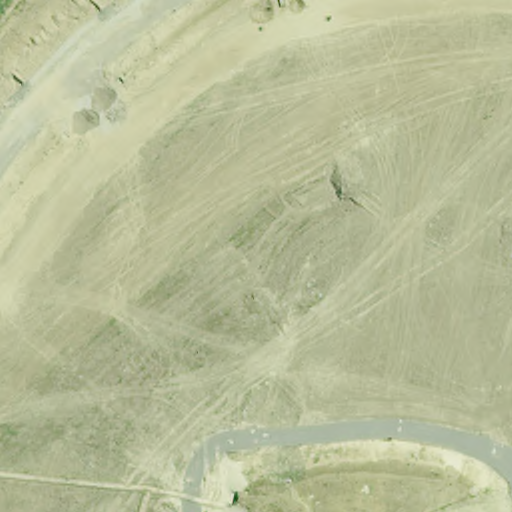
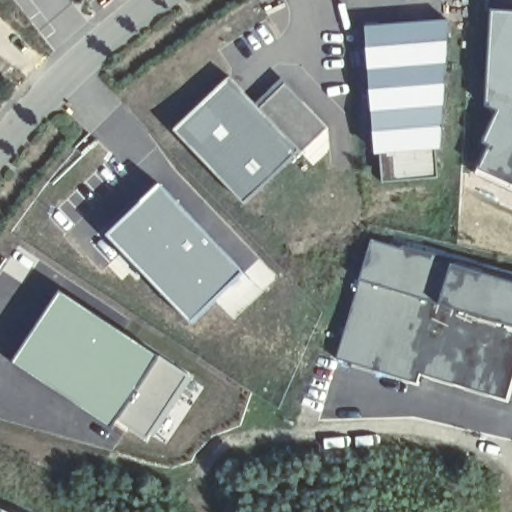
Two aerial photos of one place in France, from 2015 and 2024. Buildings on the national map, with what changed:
new [(488,145),(482,142),(497,110),(484,106),(491,8),(512,10),(512,190),(476,172),(488,145)]
new [(449,18),(439,149),(371,156),(362,27),(449,18)]
new [(173,130),(229,77),(254,103),(302,153),(246,206),(173,130)]
new [(302,153),(254,103),(283,77),(329,128),(302,153)]
new [(159,181),(245,271),(216,301),(192,324),(105,235),(159,181)]
new [(512,278),(512,329),(502,325),(501,330),(499,329),(494,346),(501,349),(501,351),(504,352),(503,366),(512,368),(512,383),(507,402),(421,375),(418,384),(335,357),(358,278),(370,237),(438,252),(452,257),(492,270),(512,278)]
new [(245,271),(260,257),(278,276),(234,320),(216,301),(245,271)]
new [(60,289),(158,353),(115,419),(109,426),(11,362),(60,289)]
new [(158,353),(194,377),(149,443),(115,419),(158,353)]
new [(0,512),(0,505),(13,512),(0,512)]

